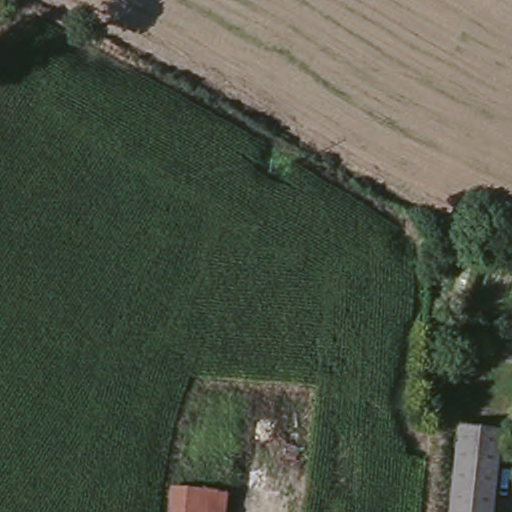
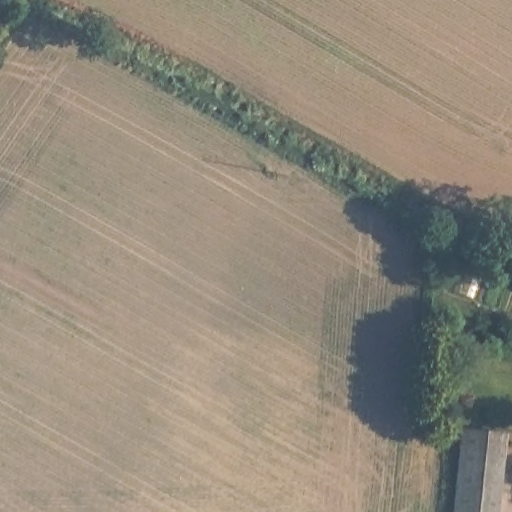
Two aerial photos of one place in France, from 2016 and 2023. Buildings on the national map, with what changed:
unchanged [(494,512),(451,512),(460,433),(501,438),(494,512)]
demolished [(164,512),(167,488),(222,492),(221,512),(164,512)]

